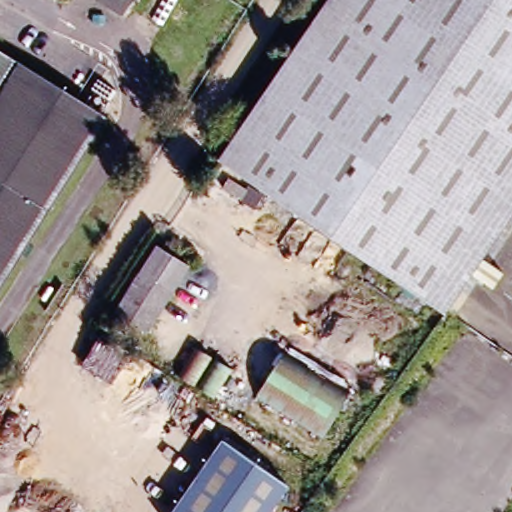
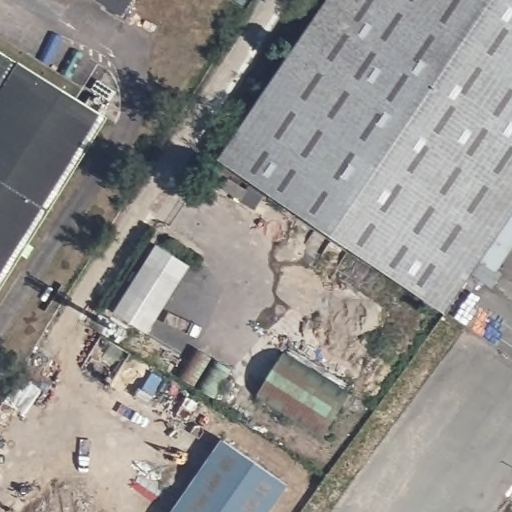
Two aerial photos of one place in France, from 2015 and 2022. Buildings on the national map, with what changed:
unchanged [(125,15),(102,0),(135,0),(125,15)]
unchanged [(477,258),(498,273),(488,288),(467,272),(440,311),(438,310),(397,282),(215,159),(326,0),(512,0),(512,207),(510,211),(477,258)]
unchanged [(0,292),(0,50),(73,97),(108,118),(0,292)]
unchanged [(185,270),(143,335),(112,316),(154,250),(185,270)]
unchanged [(215,365),(205,381),(176,362),(187,345),(215,365)]
unchanged [(345,398),(318,442),(253,402),(282,357),(345,398)]
unchanged [(266,512),(173,512),(220,444),(283,489),(266,512)]

